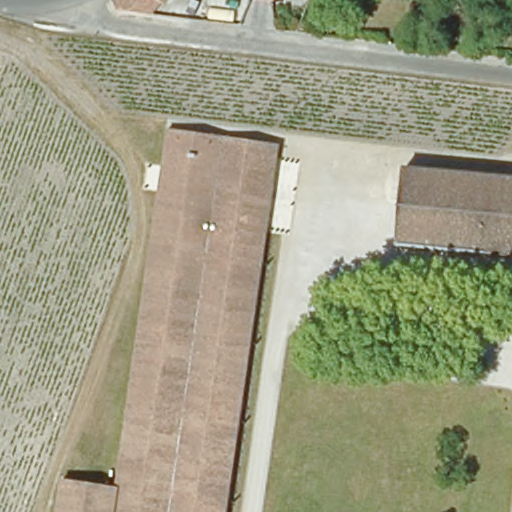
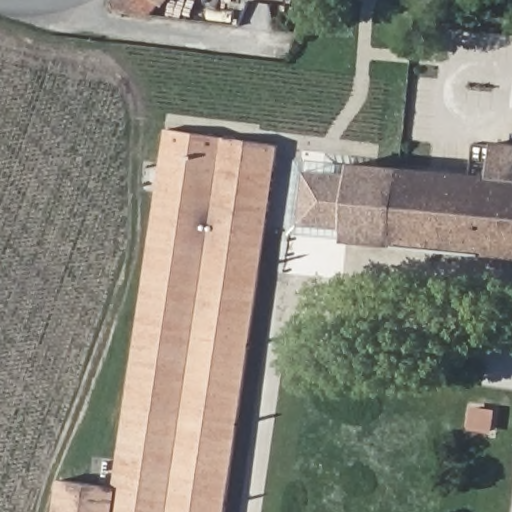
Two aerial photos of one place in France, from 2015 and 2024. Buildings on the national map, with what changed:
unchanged [(117,17),(114,8),(121,0),(156,0),(164,6),(152,21),(117,17)]
unchanged [(156,0),(170,0),(164,6),(156,0)]
unchanged [(280,152),(227,512),(57,512),(60,487),(117,495),(170,139),(280,152)]
new [(497,143),(512,144),(512,178),(492,176),(497,143)]
new [(401,247),(346,241),(346,230),(304,224),(311,170),(352,173),(355,161),(407,167),(407,170),(400,245),(401,247)]
unchanged [(400,245),(407,170),(512,178),(512,255),(400,245)]

